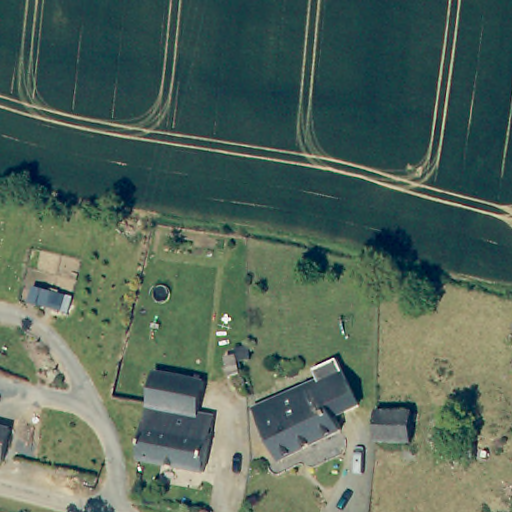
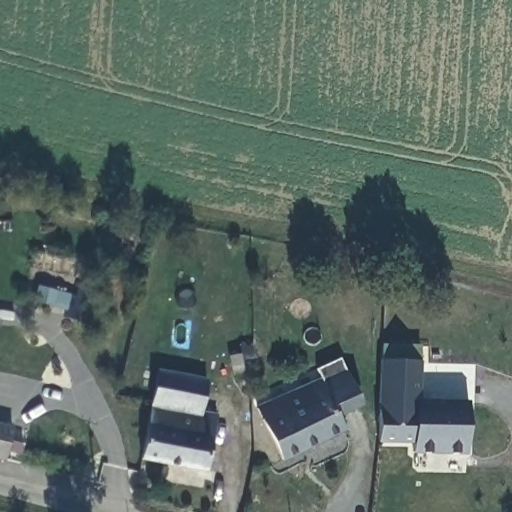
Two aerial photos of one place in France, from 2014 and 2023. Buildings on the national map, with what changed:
unchanged [(250,347),(251,360),(242,361),(235,347),(250,347)]
unchanged [(340,360),(346,376),(359,407),(336,417),(342,431),(276,458),(256,409),(321,382),(316,370),(340,360)]
new [(422,361),(420,400),(470,401),(468,455),(411,453),(411,443),(377,443),(380,360),(422,361)]
unchanged [(158,371),(206,381),(200,413),(218,417),(207,472),(140,460),(151,402),(158,371)]
demolished [(412,413),(411,442),(378,442),(379,412),(412,413)]
unchanged [(3,463),(0,463),(0,426),(12,430),(3,463)]
demolished [(472,444),(472,458),(452,457),(452,444),(472,444)]

